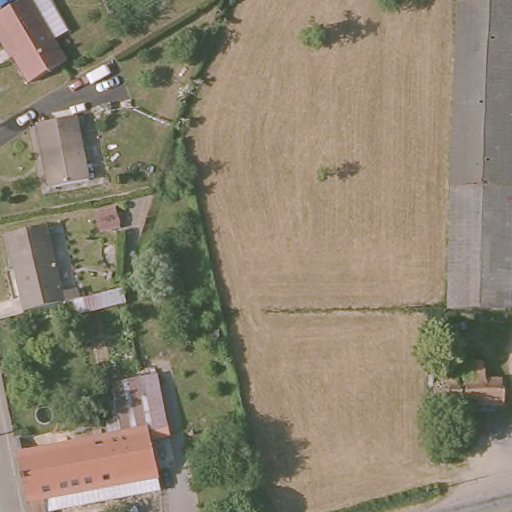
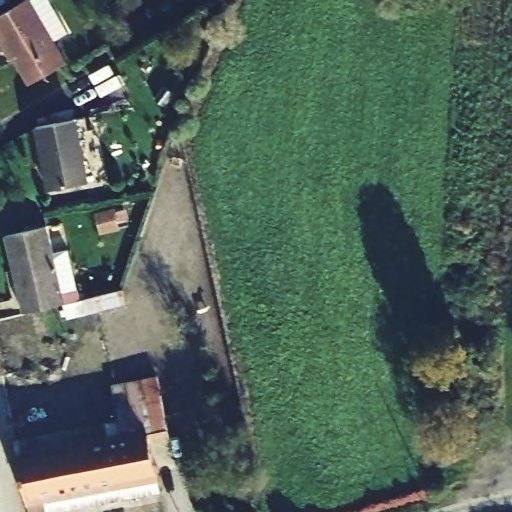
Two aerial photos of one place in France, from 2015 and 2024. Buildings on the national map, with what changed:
unchanged [(59,64),(23,85),(3,49),(0,50),(0,12),(21,0),(42,0),(47,10),(61,34),(46,43),(59,64)]
demolished [(454,179),(463,0),(512,0),(512,185),(454,179)]
unchanged [(78,124),(90,185),(54,193),(40,135),(40,134),(78,124)]
demolished [(506,310),(447,301),(454,179),(512,185),(512,216),(506,310)]
unchanged [(18,282),(10,246),(49,235),(58,272),(18,282)]
unchanged [(26,320),(18,282),(58,272),(68,311),(26,320)]
demolished [(487,372),(487,387),(507,388),(507,411),(436,413),(438,374),(487,372)]
unchanged [(160,377),(173,435),(151,441),(138,381),(160,377)]
unchanged [(126,435),(116,387),(138,381),(151,441),(158,471),(159,474),(98,488),(100,503),(65,512),(33,512),(21,461),(126,435)]

